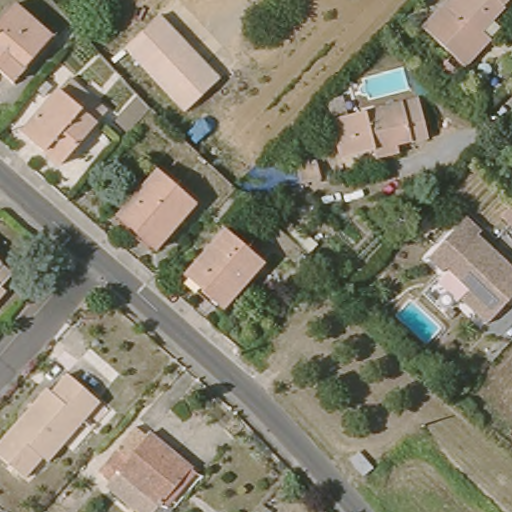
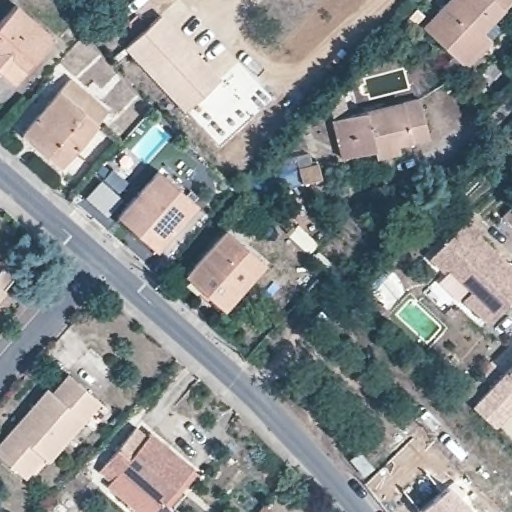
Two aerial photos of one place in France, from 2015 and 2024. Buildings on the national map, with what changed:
unchanged [(423,28),(451,0),(510,0),(479,32),(488,40),(461,66),(451,56),(423,28)]
unchanged [(0,17),(13,2),(50,34),(12,80),(0,69),(0,17)]
unchanged [(163,15),(222,75),(188,108),(128,47),(163,15)]
unchanged [(45,156),(22,135),(59,91),(68,83),(105,116),(97,125),(68,161),(60,170),(45,156)]
unchanged [(430,136),(400,143),(401,150),(376,156),(375,149),(343,156),(334,119),(422,98),(430,136)]
unchanged [(303,171),(322,167),(325,182),(306,186),(303,171)]
unchanged [(163,169),(200,202),(161,248),(156,253),(119,220),(141,194),(163,169)]
unchanged [(484,328),(458,302),(467,293),(444,270),(439,274),(426,259),(462,219),(478,233),(474,237),(512,273),(512,299),(484,328)]
unchanged [(264,262),(228,303),(208,285),(205,289),(187,272),(226,228),(264,262)]
unchanged [(0,289),(0,273),(8,280),(0,289)]
unchanged [(306,287),(316,276),(325,283),(314,294),(306,287)]
unchanged [(0,303),(0,294),(4,298),(0,303)]
new [(512,362),(512,412),(496,428),(472,406),(512,362)]
unchanged [(0,452),(0,439),(49,386),(55,392),(70,375),(103,407),(51,463),(47,459),(31,478),(23,472),(0,452)]
unchanged [(196,466),(161,506),(125,470),(109,453),(138,422),(160,442),(166,436),(196,466)]
unchanged [(363,454),(376,470),(364,479),(352,463),(363,454)]
unchanged [(155,512),(134,512),(108,487),(115,480),(125,470),(161,506),(155,512)]
new [(449,486),(468,503),(474,512),(418,512),(418,511),(449,486)]

